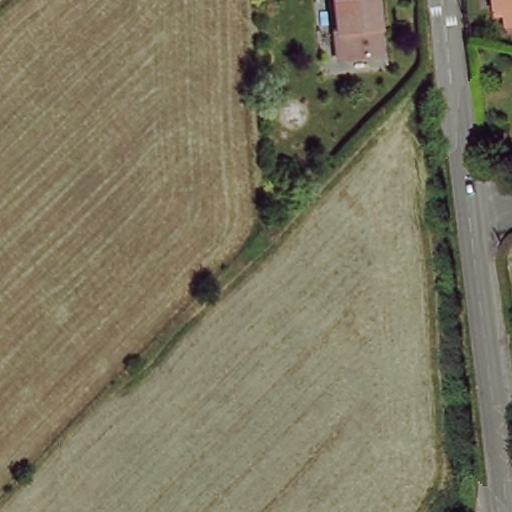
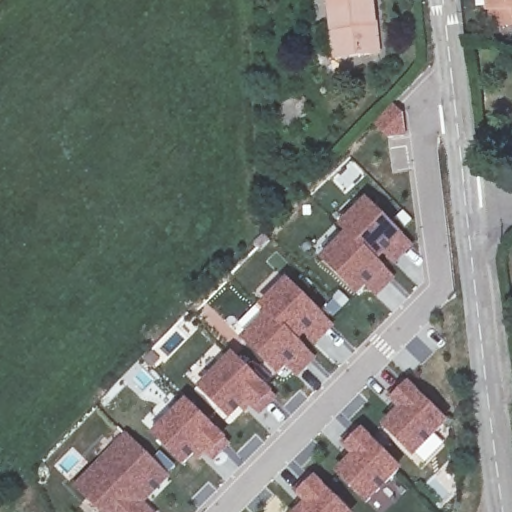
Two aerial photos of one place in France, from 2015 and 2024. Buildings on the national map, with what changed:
unchanged [(332,54),(328,0),(370,0),(374,50),(332,54)]
unchanged [(498,0),(512,0),(512,11),(498,11),(498,0)]
new [(347,234),(341,229),(366,200),(406,239),(416,249),(391,273),(398,280),(378,300),(367,289),(359,298),(320,260),(347,234)]
new [(267,315),(259,307),(287,280),(326,319),(336,330),(312,353),(319,360),(299,381),(288,371),(280,378),(241,339),(267,315)]
new [(234,356),(273,394),(278,400),(262,417),(254,410),(248,416),(243,410),(232,421),(198,387),(234,356)]
new [(398,410),(390,403),(409,383),(450,425),(416,460),(383,426),(398,410)]
new [(187,401),(227,440),(233,446),(215,465),(208,458),(203,464),(196,456),(185,467),(152,435),(187,401)]
new [(352,457),(342,447),(360,429),(403,471),(370,505),(336,473),(352,457)]
new [(127,433),(172,479),(146,505),(153,512),(100,512),(75,486),(127,433)]
new [(304,503),(297,496),(314,477),(349,512),(296,512),(304,503)]

